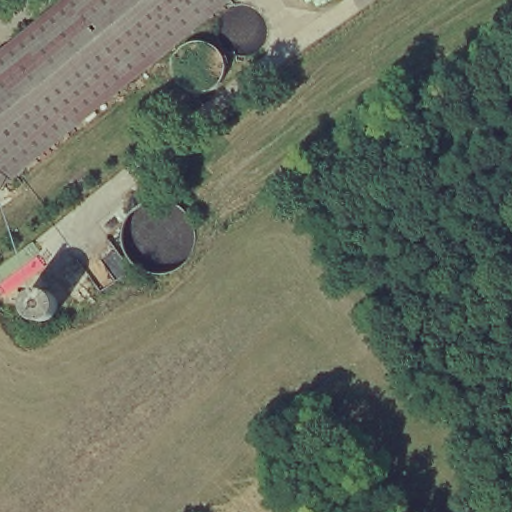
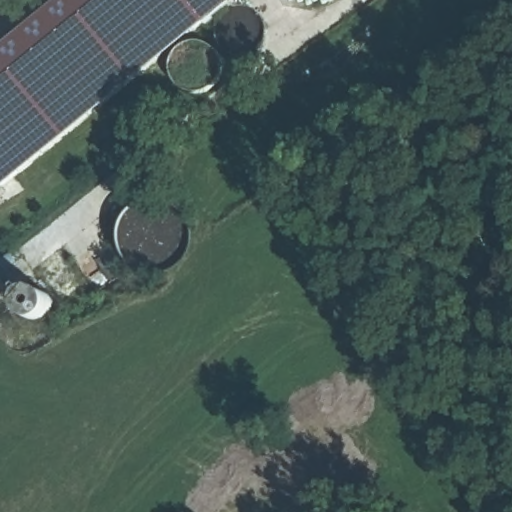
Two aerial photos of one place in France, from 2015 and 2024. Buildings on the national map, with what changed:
unchanged [(224,0),(0,182),(0,51),(62,0),(224,0)]
unchanged [(22,302),(27,291),(42,286),(57,292),(61,307),(51,320),(37,321),(26,313),(22,302)]

